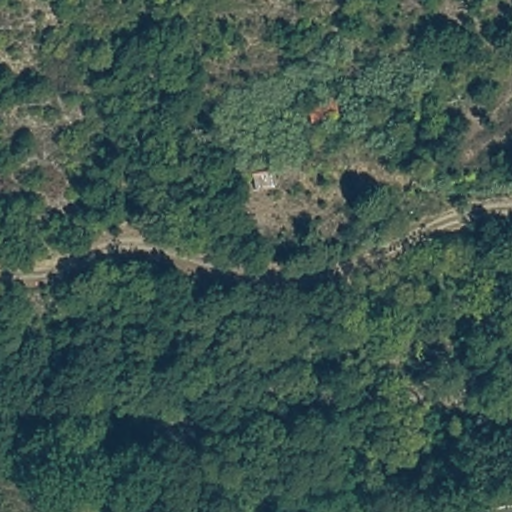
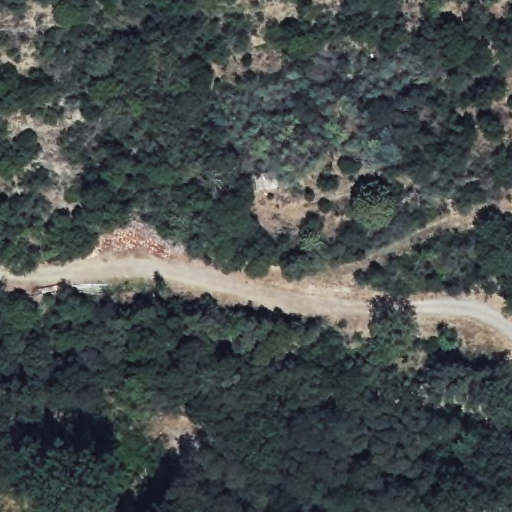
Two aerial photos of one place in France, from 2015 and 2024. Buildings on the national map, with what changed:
unchanged [(310,107),(336,101),(342,119),(315,127),(310,107)]

